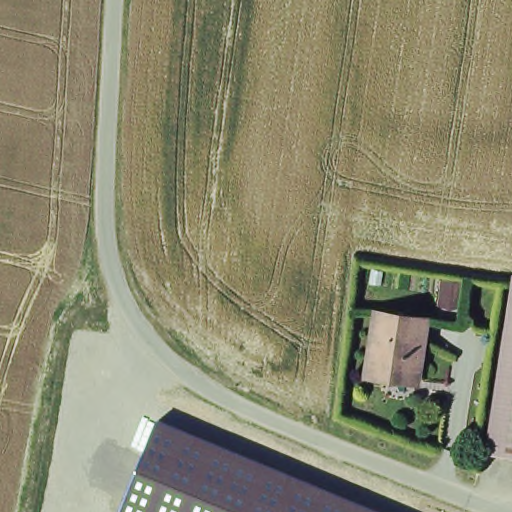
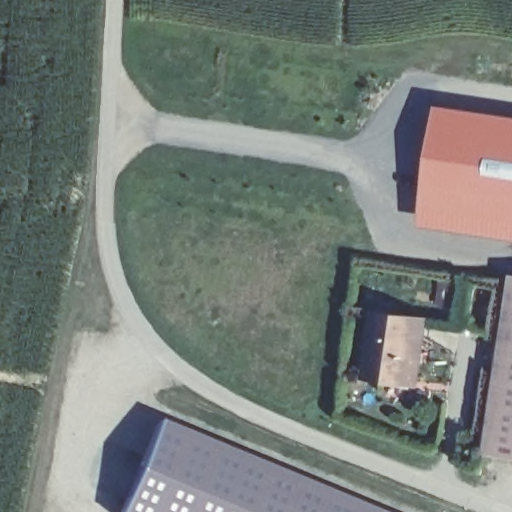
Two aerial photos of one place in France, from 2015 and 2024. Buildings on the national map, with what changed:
new [(512,115),(512,238),(422,225),(439,104),(512,115)]
unchanged [(512,285),(512,465),(486,462),(507,284),(512,285)]
unchanged [(369,316),(424,321),(417,381),(407,381),(404,376),(387,374),(385,379),(362,377),(369,316)]
unchanged [(160,419),(385,512),(121,512),(160,419)]

